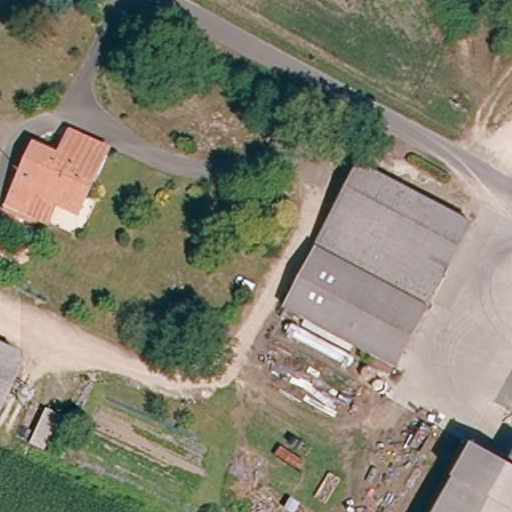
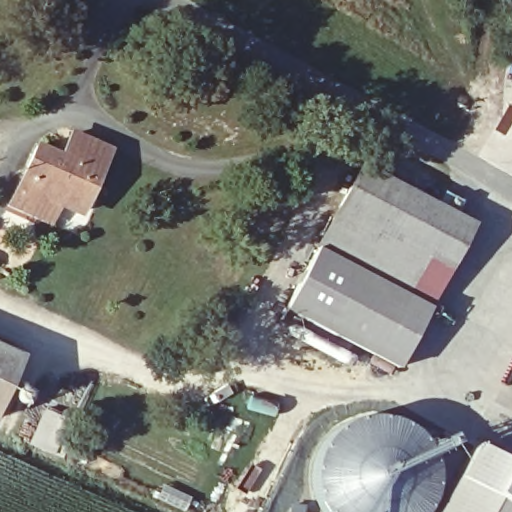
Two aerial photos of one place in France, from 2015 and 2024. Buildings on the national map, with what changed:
unchanged [(18,213),(5,207),(35,145),(49,152),(42,165),(53,170),(69,138),(106,158),(77,216),(40,199),(30,219),(18,213)]
unchanged [(464,220),(427,309),(314,255),(353,166),(464,220)]
unchanged [(427,309),(398,368),(288,316),(314,255),(427,309)]
unchanged [(0,409),(0,356),(20,365),(0,409)]
new [(394,418),(406,424),(416,432),(424,440),(430,450),(434,463),(436,474),(435,485),(433,496),(427,507),(424,512),(324,512),(319,504),(315,493),(313,481),(314,470),(317,458),(321,446),(329,435),(337,429),(346,422),(358,417),(370,415),(381,416),(394,418)]
unchanged [(481,446),(512,462),(512,512),(443,512),(481,446)]

